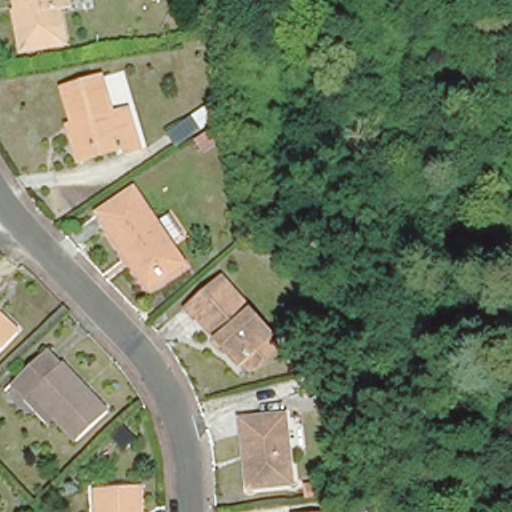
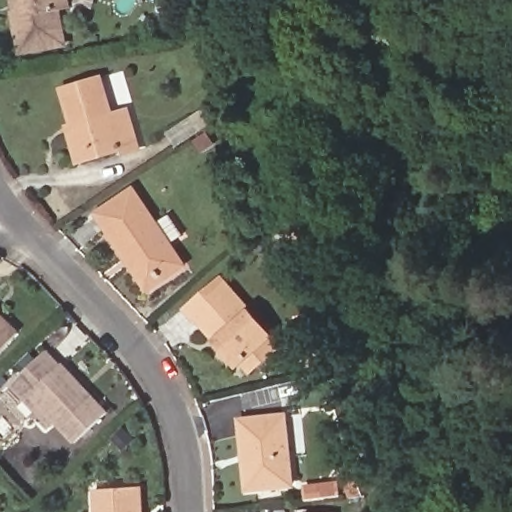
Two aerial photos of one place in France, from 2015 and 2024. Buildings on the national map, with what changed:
unchanged [(10,10),(16,9),(15,0),(66,0),(67,7),(56,9),(61,42),(17,50),(10,10)]
unchanged [(397,9),(370,11),(369,0),(420,0),(398,1),(397,9)]
unchanged [(64,128),(74,126),(63,90),(104,78),(114,114),(131,110),(142,150),(125,154),(124,149),(75,163),(64,128)]
unchanged [(172,144),(162,128),(201,101),(212,117),(172,144)]
unchanged [(148,294),(127,262),(95,214),(134,189),(182,264),(186,270),(148,294)]
unchanged [(251,371),(246,365),(242,368),(190,308),(224,278),(275,338),(271,342),(276,349),(251,371)]
unchanged [(21,328),(0,349),(0,309),(21,328)]
unchanged [(22,397),(11,383),(49,353),(60,364),(64,362),(109,414),(75,442),(51,414),(44,421),(22,397)]
unchanged [(292,484),(251,488),(243,419),(286,415),(292,484)]
unchanged [(119,427),(131,437),(121,448),(109,438),(119,427)]
unchanged [(342,471),(353,468),(362,499),(351,500),(342,471)]
unchanged [(141,489),(141,512),(97,512),(96,491),(141,489)]
unchanged [(338,507),(339,512),(297,512),(297,509),(338,507)]

